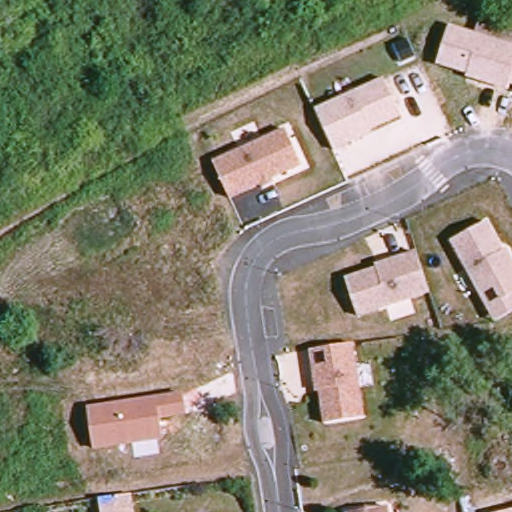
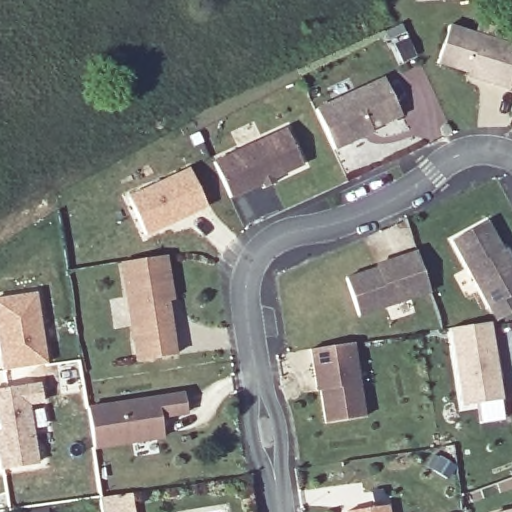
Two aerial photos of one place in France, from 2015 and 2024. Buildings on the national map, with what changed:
unchanged [(512,43),(512,71),(506,90),(463,77),(465,72),(435,63),(447,23),(512,43)]
unchanged [(402,116),(333,147),(317,109),(383,79),(402,116)]
unchanged [(214,160),(286,129),(302,165),(273,177),(275,183),(262,189),(261,184),(232,197),(214,160)]
new [(208,205),(147,232),(130,194),(191,167),(208,205)]
unchanged [(450,239),(486,220),(502,250),(507,247),(512,255),(512,312),(495,321),(450,239)]
unchanged [(345,278),(376,268),(373,261),(415,249),(430,293),(357,316),(345,278)]
new [(172,288),(174,300),(168,300),(177,355),(139,360),(123,262),(167,255),(172,288)]
new [(45,362),(2,369),(0,360),(0,297),(34,292),(45,362)]
new [(448,328),(490,322),(501,399),(461,405),(448,328)]
unchanged [(325,422),(320,389),(313,389),(308,349),(354,340),(366,416),(325,422)]
new [(40,401),(26,403),(35,462),(0,468),(0,389),(37,383),(40,401)]
unchanged [(184,394),(187,416),(161,420),(162,440),(93,450),(87,407),(184,394)]
unchanged [(392,505),(393,512),(355,512),(355,511),(392,505)]
unchanged [(508,512),(512,511),(512,512),(508,512)]

